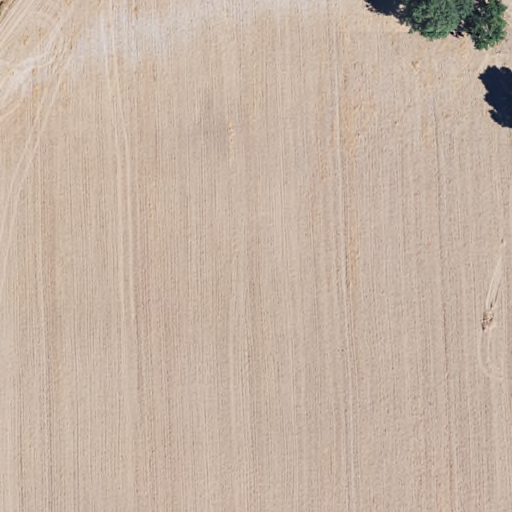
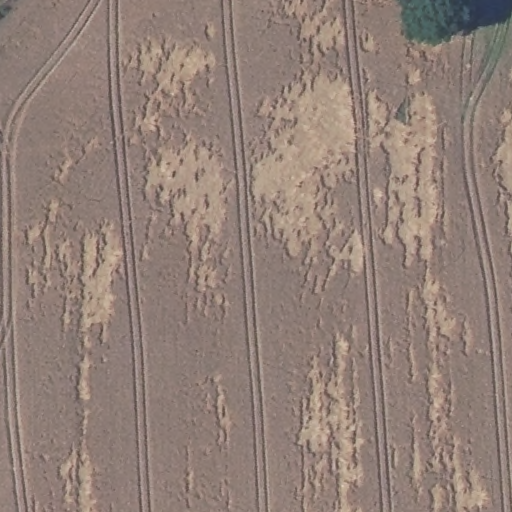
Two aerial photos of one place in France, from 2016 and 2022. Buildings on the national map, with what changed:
[]

